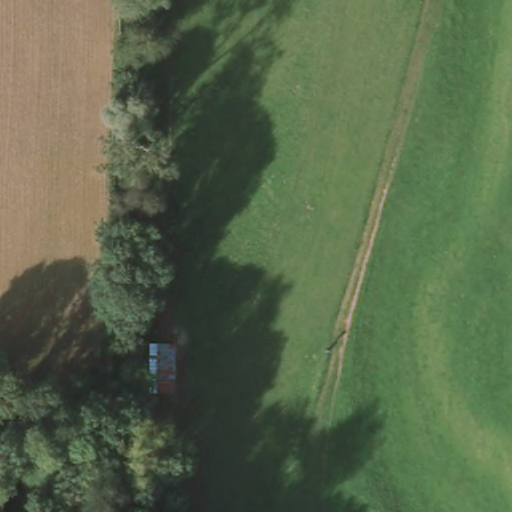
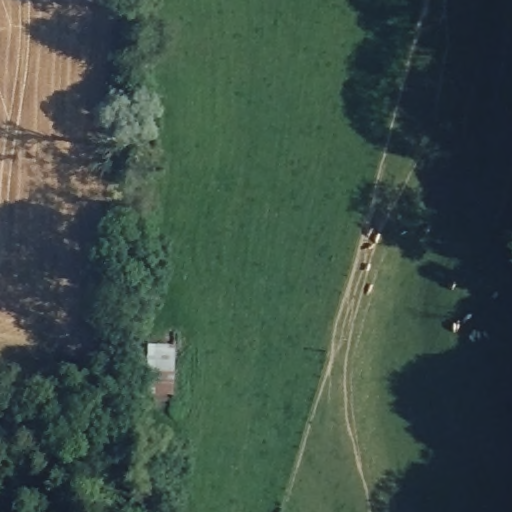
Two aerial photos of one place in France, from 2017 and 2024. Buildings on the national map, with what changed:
unchanged [(125,383),(125,336),(155,339),(152,383),(125,383)]

